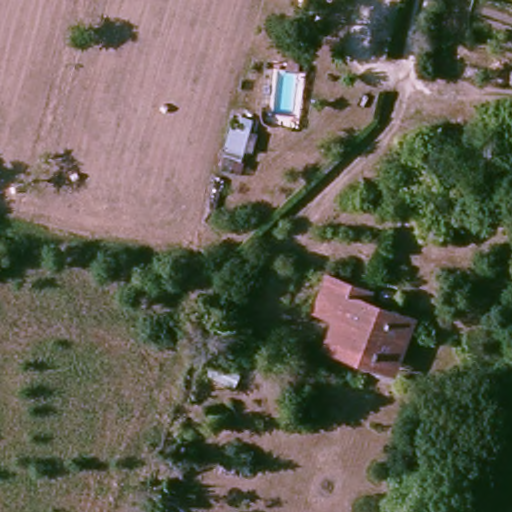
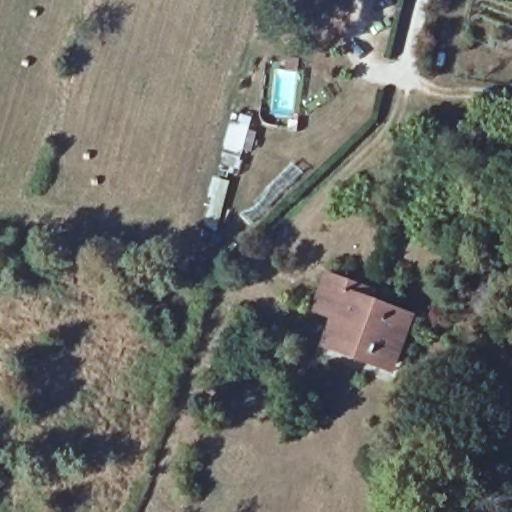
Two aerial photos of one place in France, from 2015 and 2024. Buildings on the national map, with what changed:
unchanged [(319,52),(318,63),(306,62),(307,52),(319,52)]
unchanged [(331,337),(344,303),(321,297),(329,275),(358,284),(355,295),(372,300),(369,307),(392,314),(394,308),(418,315),(403,355),(399,363),(354,346),(331,337)]
unchanged [(243,293),(258,300),(249,318),(244,329),(230,321),(233,315),(243,293)]
unchanged [(180,485),(177,498),(164,495),(167,482),(180,485)]

